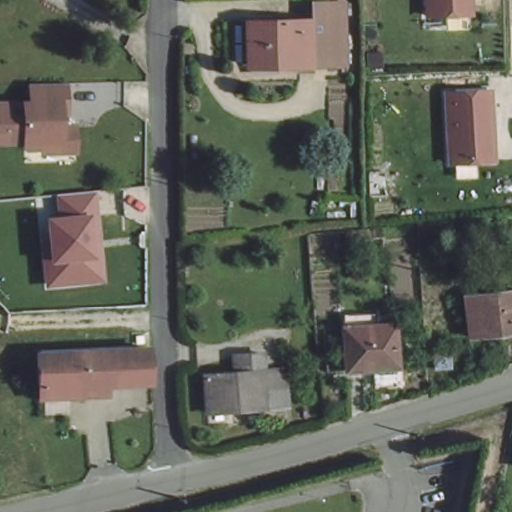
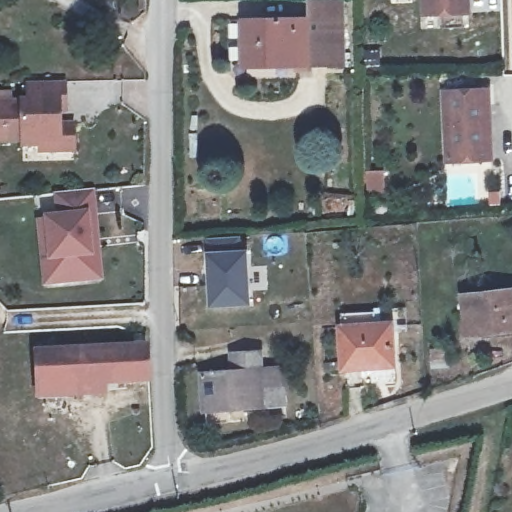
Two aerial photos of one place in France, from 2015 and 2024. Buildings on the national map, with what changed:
unchanged [(420,11),(419,0),(463,0),(463,10),(420,11)]
unchanged [(300,67),(300,63),(250,64),(249,21),(315,20),(315,2),(346,2),(347,67),(300,67)]
unchanged [(73,140),(73,146),(60,146),(40,146),(40,143),(40,140),(22,141),(22,136),(0,136),(0,98),(28,97),(28,78),(50,77),(64,77),(65,97),(65,105),(59,106),(59,121),(73,121),(73,140)]
unchanged [(490,83),(491,152),(447,154),(446,84),(490,83)]
unchanged [(95,191),(103,283),(44,287),(37,217),(56,215),(54,194),(95,191)]
new [(244,234),(252,305),(209,308),(204,237),(244,234)]
unchanged [(465,294),(512,289),(512,326),(467,333),(465,294)]
unchanged [(337,365),(336,326),(389,324),(393,380),(370,381),(369,363),(337,365)]
unchanged [(77,397),(31,397),(33,358),(147,353),(147,386),(78,390),(77,397)]
unchanged [(230,373),(229,353),(239,353),(259,353),(260,372),(280,372),(281,410),(201,412),(203,373),(230,373)]

